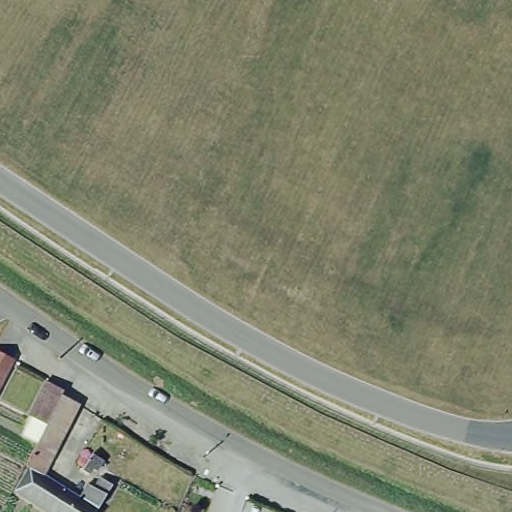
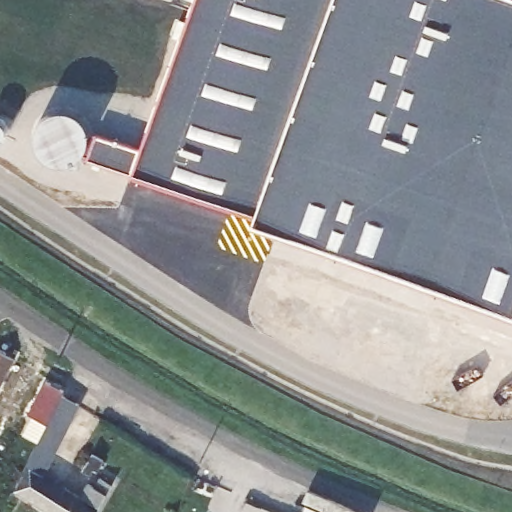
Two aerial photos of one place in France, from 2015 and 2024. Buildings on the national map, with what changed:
new [(131,175),(140,151),(194,0),(332,0),(254,219),(131,175)]
new [(254,219),(332,0),(512,0),(512,312),(254,219)]
new [(87,159),(97,135),(140,151),(131,175),(87,159)]
unchanged [(0,378),(0,347),(12,353),(0,378)]
unchanged [(25,460),(37,437),(22,429),(32,411),(28,410),(45,376),(63,386),(61,390),(79,400),(43,471),(79,493),(87,478),(94,482),(100,472),(112,480),(97,505),(92,512),(58,512),(15,485),(29,462),(25,460)]
unchanged [(92,447),(102,455),(95,466),(92,463),(89,468),(82,464),(92,447)]

